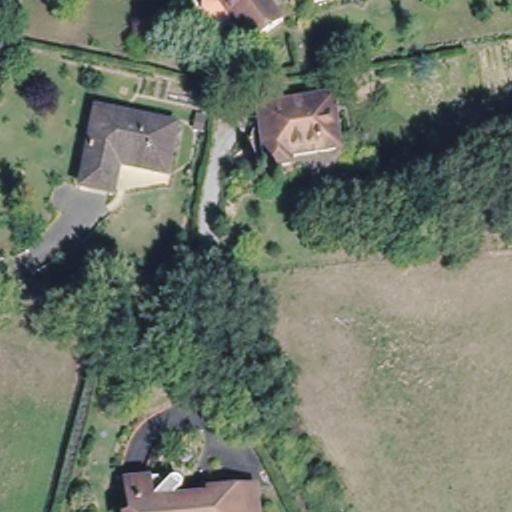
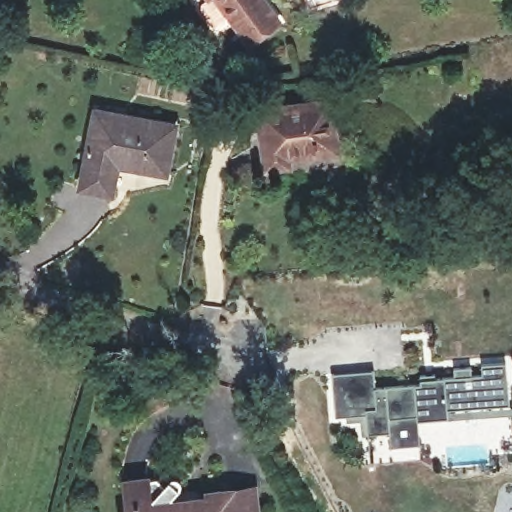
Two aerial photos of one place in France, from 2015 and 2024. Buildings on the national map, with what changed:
unchanged [(251,39),(234,15),(224,0),(271,0),(283,19),(251,39)]
unchanged [(335,97),(341,144),(299,151),(300,162),(272,166),(263,106),(335,97)]
unchanged [(95,107),(177,125),(168,173),(123,165),(116,194),(80,185),(95,107)]
new [(407,433),(385,435),(378,436),(377,422),(363,424),(363,418),(352,419),(348,375),(391,371),(392,389),(437,384),(437,376),(452,375),(452,378),(471,376),(470,368),(488,366),(488,375),(499,374),(498,364),(512,363),(512,405),(464,410),(464,412),(463,412),(463,417),(435,420),(438,445),(408,448),(407,433)]
unchanged [(167,475),(167,458),(176,457),(183,465),(183,476),(171,490),(172,500),(210,495),(209,485),(224,483),(224,490),(240,487),(239,479),(254,477),(258,512),(125,512),(120,481),(167,475)]

